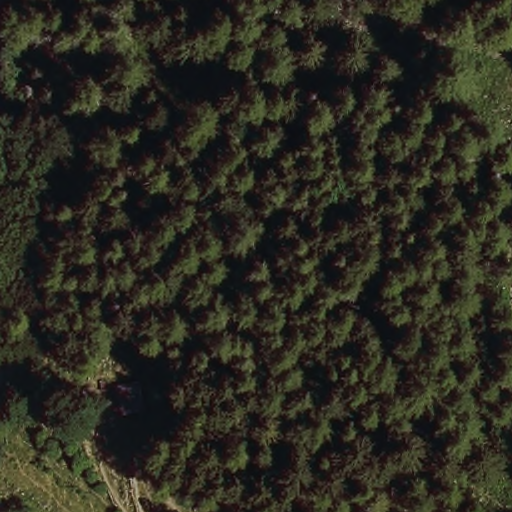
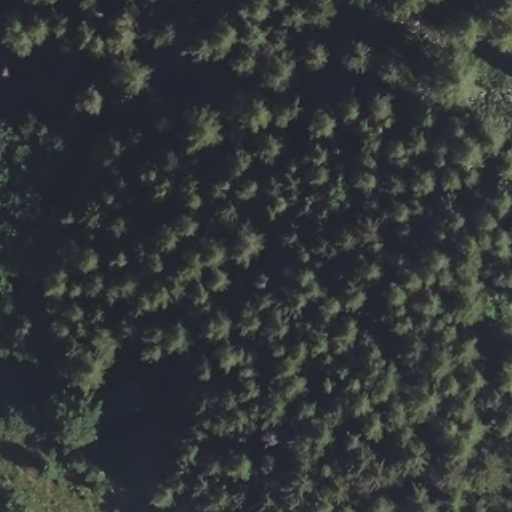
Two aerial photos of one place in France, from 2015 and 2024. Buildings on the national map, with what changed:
unchanged [(85,355),(83,374),(68,375),(69,358),(85,355)]

